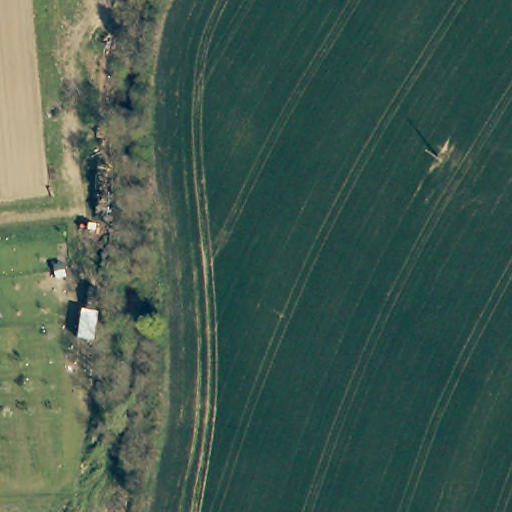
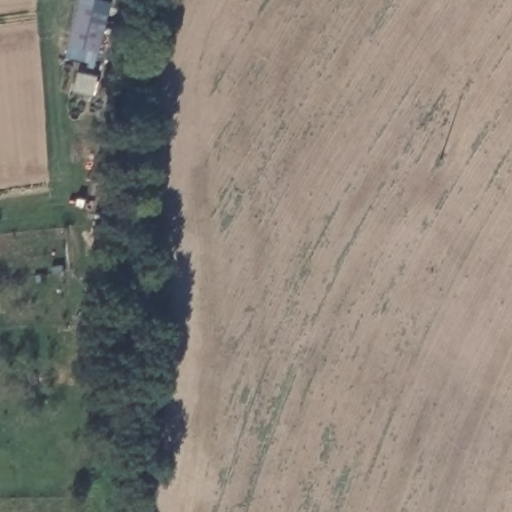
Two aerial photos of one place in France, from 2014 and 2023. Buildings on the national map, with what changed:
new [(96,64),(65,55),(79,0),(101,0),(111,2),(96,64)]

